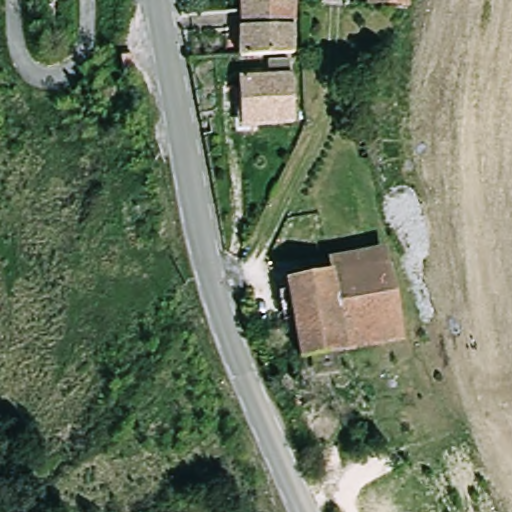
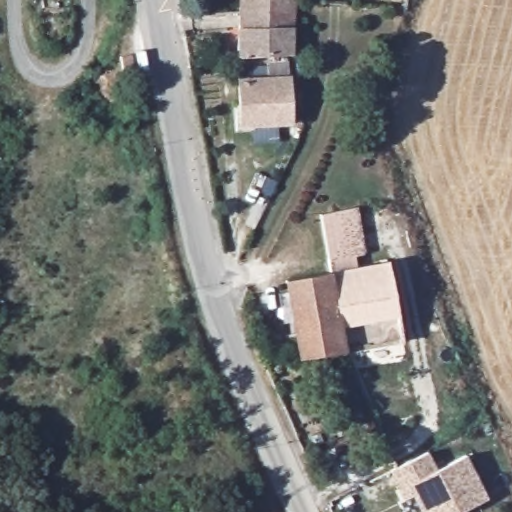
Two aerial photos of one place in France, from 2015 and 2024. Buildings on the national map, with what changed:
unchanged [(237,0),(290,0),(290,1),(285,54),(235,53),(236,10),(237,0)]
unchanged [(290,0),(321,0),(321,4),(290,1),(290,0)]
unchanged [(361,6),(362,0),(399,0),(398,10),(361,6)]
unchanged [(131,44),(137,74),(123,76),(118,46),(131,44)]
unchanged [(235,75),(285,75),(285,120),(235,119),(235,75)]
new [(329,270),(327,260),(318,215),(357,206),(366,254),(355,256),(357,265),(329,270)]
unchanged [(262,283),(387,260),(403,340),(345,350),(303,357),(292,292),(264,296),(262,283)]
new [(405,500),(390,471),(427,452),(436,470),(466,455),(488,497),(461,512),(421,512),(412,496),(405,500)]

